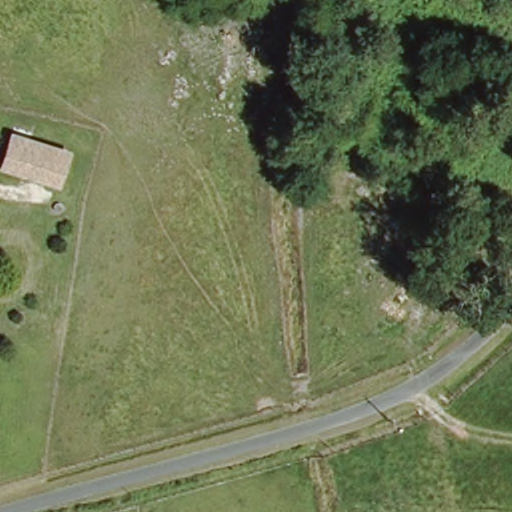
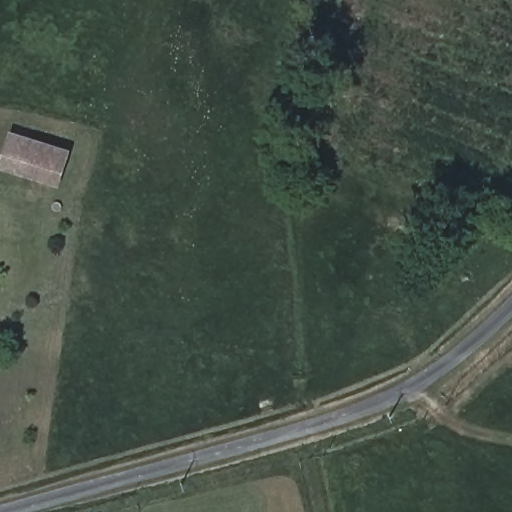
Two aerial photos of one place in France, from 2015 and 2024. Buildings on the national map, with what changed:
unchanged [(0,172),(0,149),(6,131),(71,151),(60,190),(0,172)]

